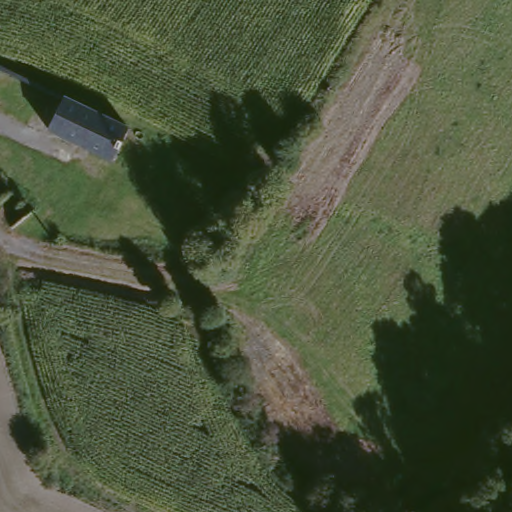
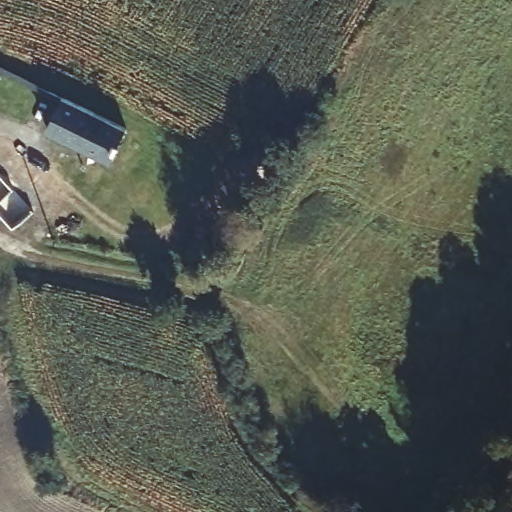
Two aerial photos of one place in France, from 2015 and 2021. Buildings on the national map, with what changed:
unchanged [(61,97),(129,127),(109,158),(48,130),(61,97)]

